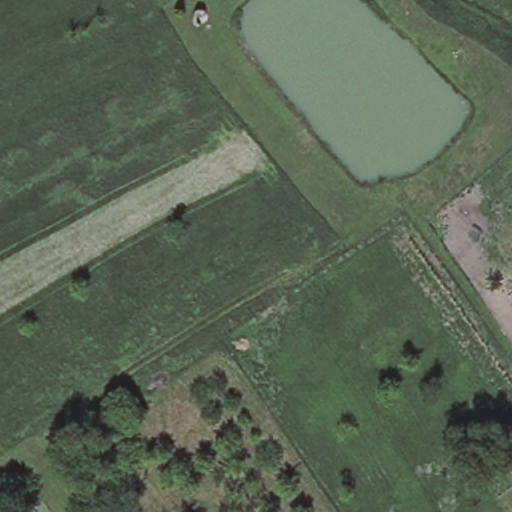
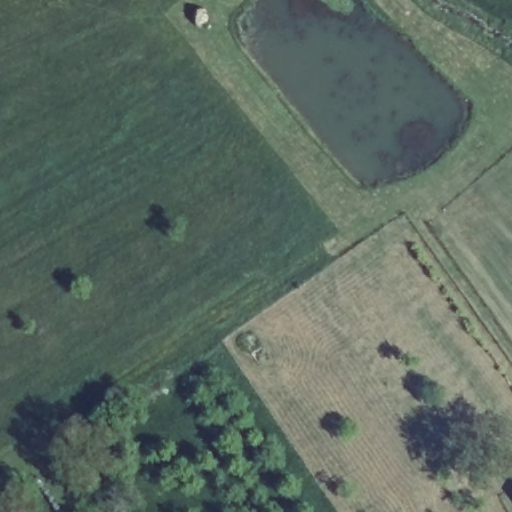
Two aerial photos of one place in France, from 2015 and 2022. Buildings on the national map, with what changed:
unchanged [(237,91),(247,107),(238,114),(227,101),(237,91)]

